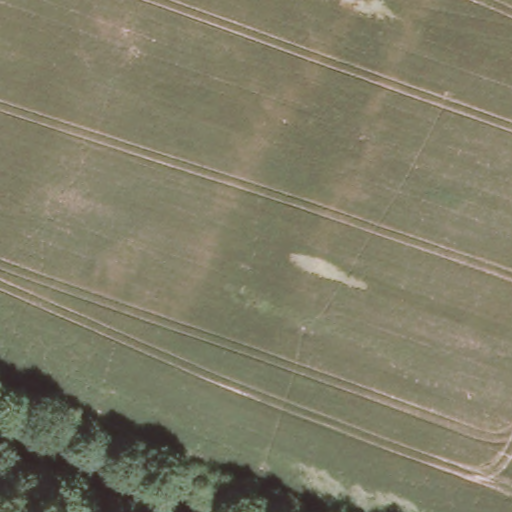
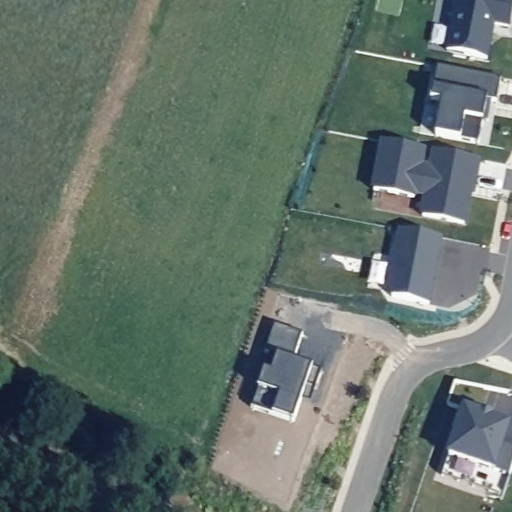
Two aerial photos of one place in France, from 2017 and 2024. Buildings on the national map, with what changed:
new [(495,26),(490,60),(446,53),(456,0),(512,0),(512,26),(512,28),(495,26)]
new [(497,101),(493,101),(489,121),(484,120),(480,144),(463,136),(462,140),(437,135),(443,101),(432,99),(435,88),(437,88),(440,65),(502,77),(497,101)]
new [(427,150),(483,160),(475,198),(474,197),(468,227),(420,220),(423,202),(372,192),(380,142),(427,150)]
new [(429,308),(386,299),(399,233),(441,240),(429,308)]
new [(292,363),(312,370),(310,373),(320,375),(310,408),(299,407),(293,427),(270,421),(251,412),(257,392),(264,374),(270,358),(264,357),(274,328),(302,336),(292,363)]
new [(455,454),(451,452),(465,412),(510,427),(505,451),(512,453),(512,471),(503,498),(457,483),(459,477),(454,475),(458,462),(455,454)]

